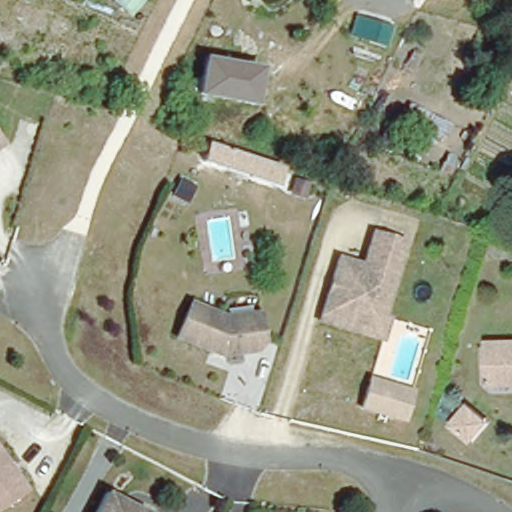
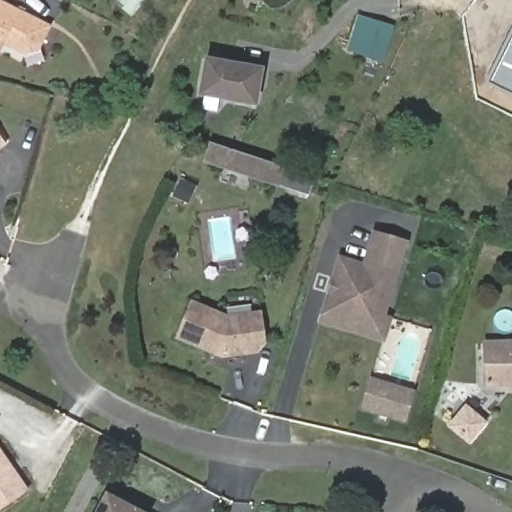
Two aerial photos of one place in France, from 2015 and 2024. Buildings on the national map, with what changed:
new [(25,55),(4,45),(0,53),(0,0),(51,25),(39,51),(25,55)]
new [(361,18),(392,27),(388,44),(356,35),(361,18)]
new [(512,35),(512,96),(487,84),(512,35)]
unchanged [(258,106),(198,96),(206,56),(266,66),(258,106)]
unchanged [(431,141),(407,128),(400,151),(376,145),(379,121),(399,125),(411,100),(443,116),(431,141)]
unchanged [(0,143),(0,139),(2,141),(0,143)]
unchanged [(280,187),(204,161),(210,141),(286,166),(280,187)]
unchanged [(381,339),(318,322),(320,315),(337,258),(361,264),(371,230),(403,239),(381,316),(388,318),(381,339)]
unchanged [(221,320),(228,318),(254,312),(260,340),(254,351),(222,360),(216,359),(173,346),(185,310),(221,320)]
unchanged [(512,344),(512,385),(484,387),(482,346),(512,344)]
unchanged [(407,422),(361,409),(370,376),(415,389),(407,422)]
unchanged [(470,445),(448,426),(466,403),(488,422),(470,445)]
unchanged [(2,512),(0,512),(0,454),(29,493),(2,512)]
unchanged [(140,512),(94,512),(104,494),(140,512)]

